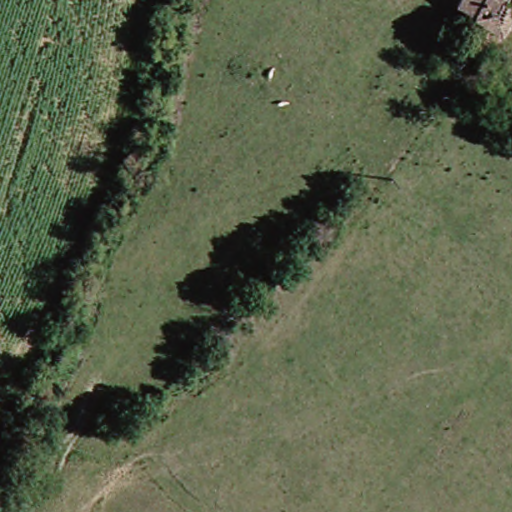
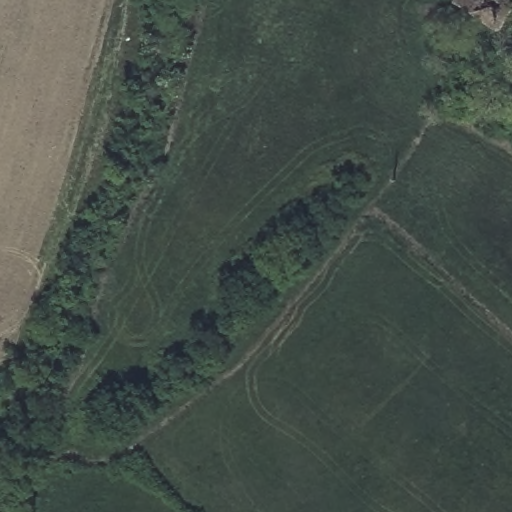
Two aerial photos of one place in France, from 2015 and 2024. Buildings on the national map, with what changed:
unchanged [(466,10),(472,0),(512,0),(512,30),(509,35),(466,10)]

